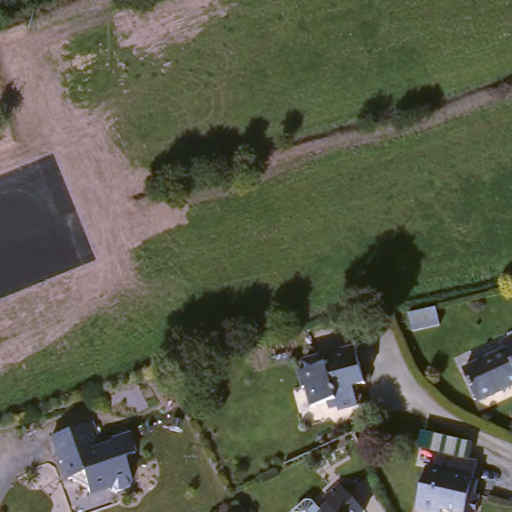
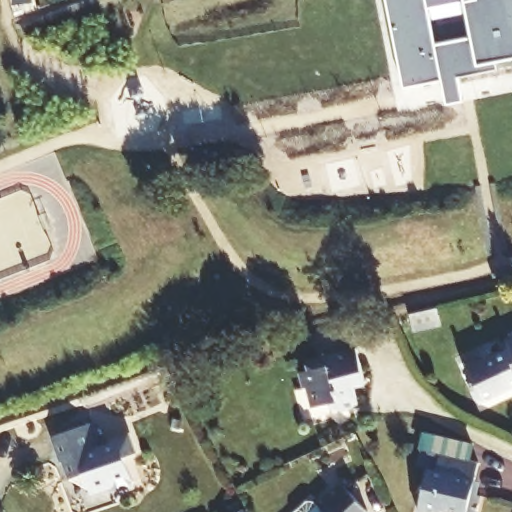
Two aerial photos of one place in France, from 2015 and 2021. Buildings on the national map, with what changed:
new [(12,4),(11,0),(30,0),(30,2),(12,4)]
new [(497,70),(458,77),(461,100),(446,104),(442,81),(403,88),(386,0),(512,0),(512,58),(495,61),(497,70)]
unchanged [(507,339),(512,337),(512,390),(481,401),(466,366),(511,345),(507,339)]
unchanged [(356,351),(368,390),(352,395),(357,414),(340,419),(339,416),(328,417),(327,411),(309,416),(300,376),(311,375),(308,365),(356,351)]
unchanged [(91,423),(99,448),(113,443),(112,439),(129,434),(135,455),(123,460),(130,488),(114,493),(112,486),(87,492),(82,475),(65,480),(52,435),(91,423)]
unchanged [(477,463),(475,494),(482,494),(480,512),(423,512),(429,476),(439,475),(443,459),(477,463)]
unchanged [(342,484),(366,511),(365,512),(335,512),(325,500),(342,484)]
unchanged [(312,507),(318,508),(322,512),(308,512),(312,507)]

